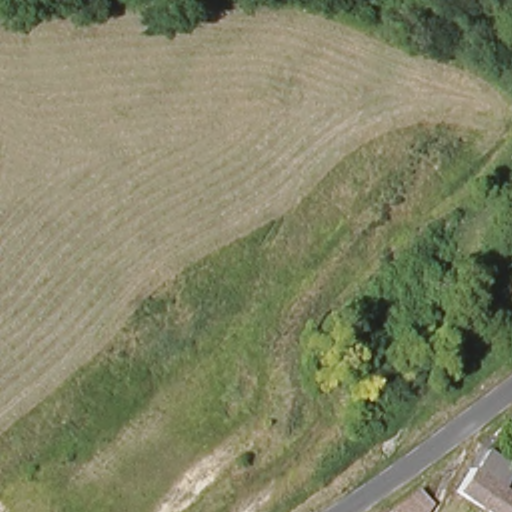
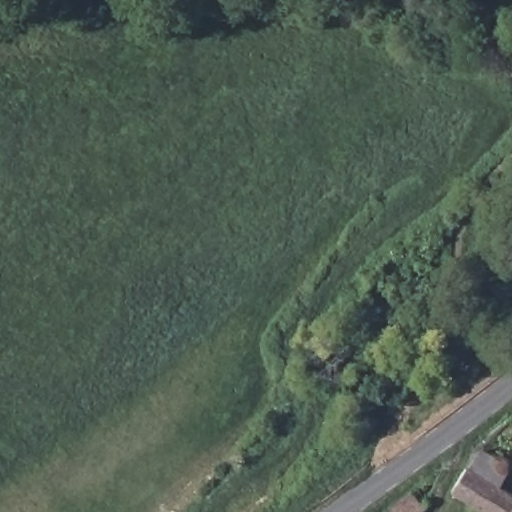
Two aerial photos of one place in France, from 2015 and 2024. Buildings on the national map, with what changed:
unchanged [(509,510),(511,512),(491,512),(450,485),(464,462),(467,464),(480,445),(507,462),(495,481),(512,493),(512,506),(509,510)]
unchanged [(413,488),(428,505),(420,512),(388,512),(413,488)]

